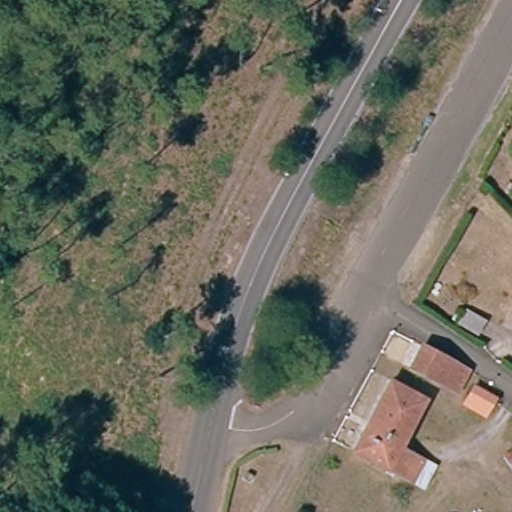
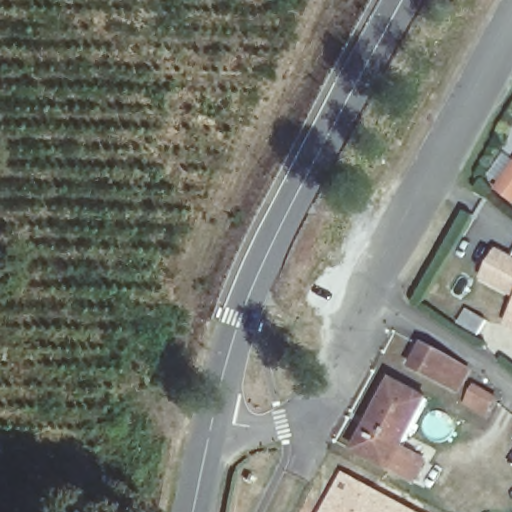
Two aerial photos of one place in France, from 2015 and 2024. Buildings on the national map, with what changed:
new [(493,190),(512,163),(512,203),(493,190)]
new [(481,281),(498,249),(512,256),(512,297),(481,281)]
new [(503,324),(512,306),(512,329),(503,324)]
demolished [(502,326),(512,307),(512,331),(502,326)]
unchanged [(463,310),(482,320),(475,335),(456,324),(463,310)]
unchanged [(412,368),(424,347),(470,372),(458,393),(412,368)]
unchanged [(345,452),(382,382),(417,401),(392,449),(416,462),(404,483),(345,452)]
unchanged [(497,400),(487,416),(467,404),(477,387),(497,400)]
new [(343,472),(417,512),(321,512),(343,472)]

